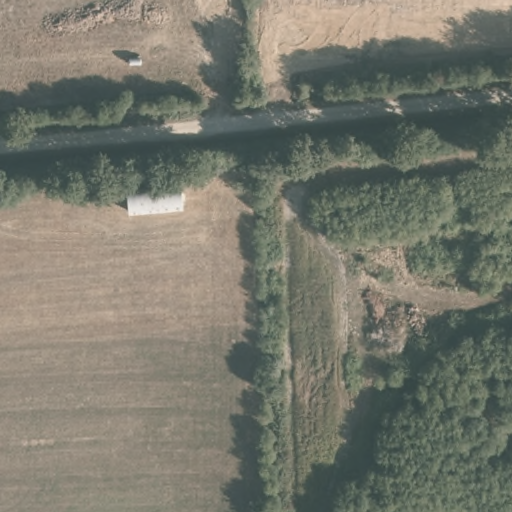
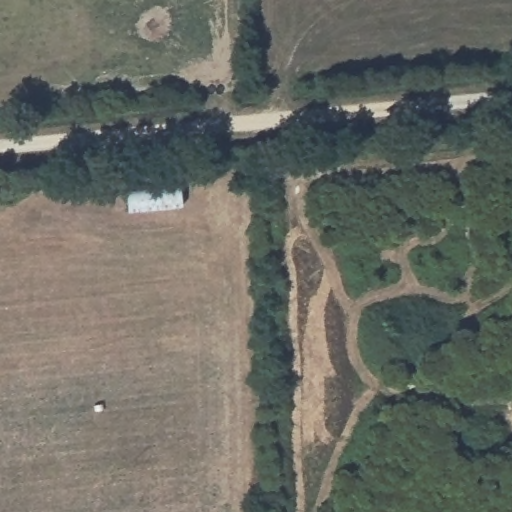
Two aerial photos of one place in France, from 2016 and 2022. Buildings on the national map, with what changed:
unchanged [(183,185),(185,207),(132,212),(132,189),(183,185)]

